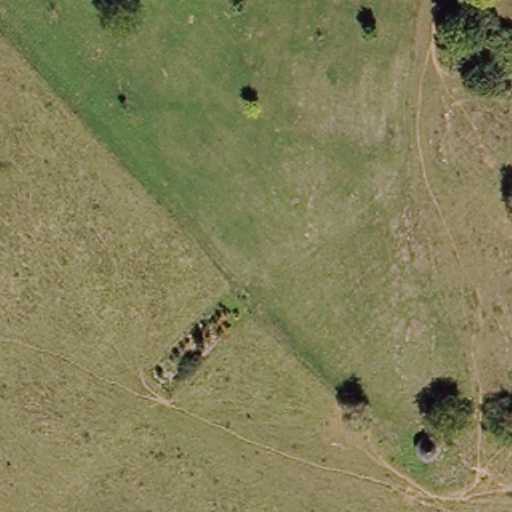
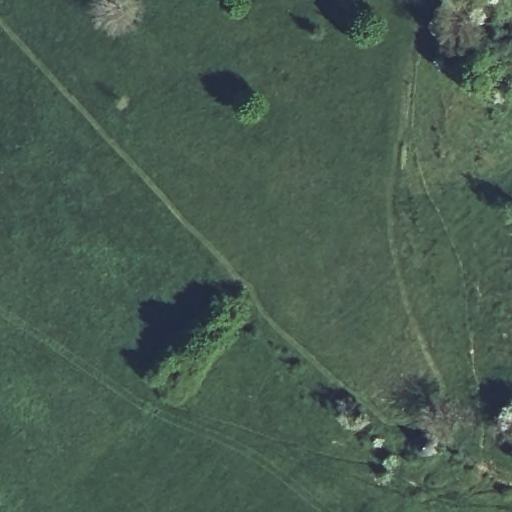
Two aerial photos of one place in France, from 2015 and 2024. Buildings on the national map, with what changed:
unchanged [(451,420),(433,434),(415,417),(440,401),(451,420)]

